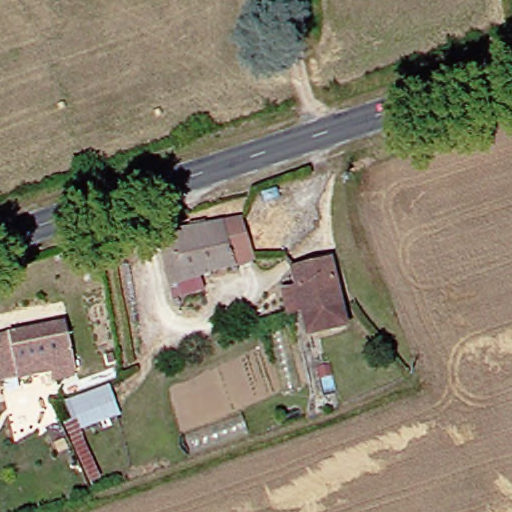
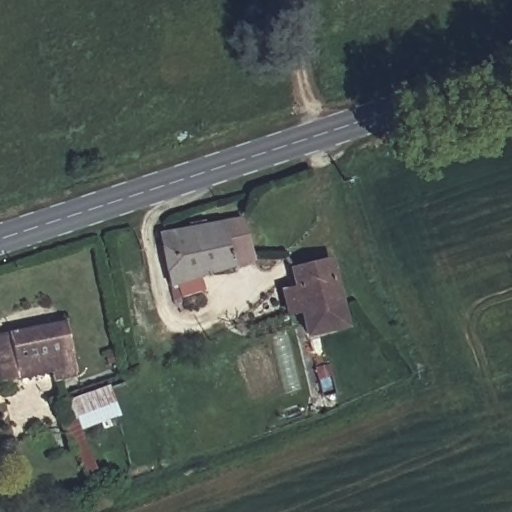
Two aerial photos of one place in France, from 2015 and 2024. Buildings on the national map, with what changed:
unchanged [(249,263),(230,271),(230,269),(195,280),(200,294),(177,302),(173,288),(165,291),(155,239),(236,223),(249,263)]
unchanged [(282,314),(277,291),(291,288),(287,270),(286,269),(323,260),(324,260),(340,326),(302,335),(296,310),(282,314)]
unchanged [(75,377),(50,385),(47,377),(1,387),(0,382),(0,340),(63,328),(75,377)]
unchanged [(120,422),(80,437),(96,478),(84,483),(72,460),(60,466),(55,457),(70,448),(60,426),(70,421),(61,403),(106,387),(120,422)]

